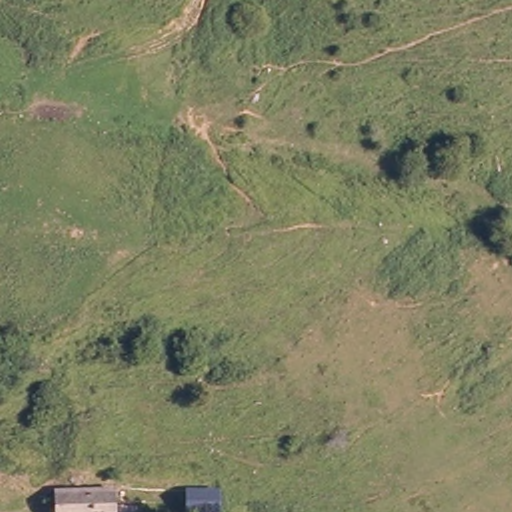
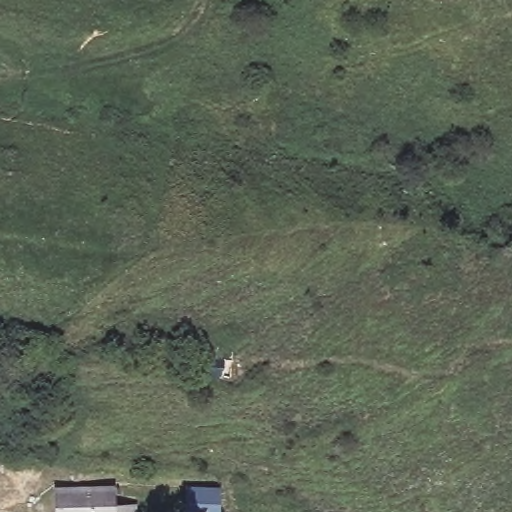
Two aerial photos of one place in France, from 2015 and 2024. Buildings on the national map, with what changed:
unchanged [(120,469),(121,501),(140,502),(140,512),(58,512),(55,472),(120,469)]
unchanged [(189,510),(187,484),(217,485),(224,508),(189,510)]

